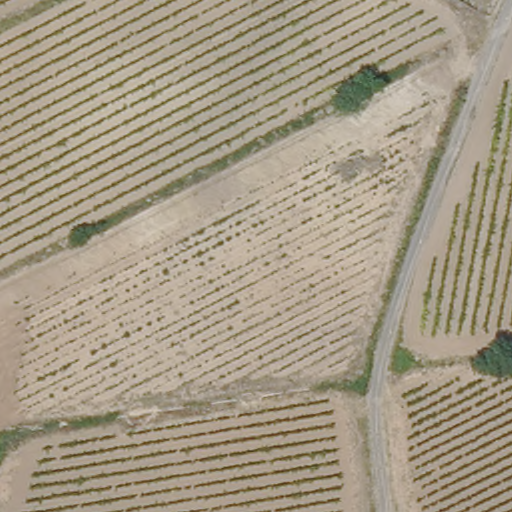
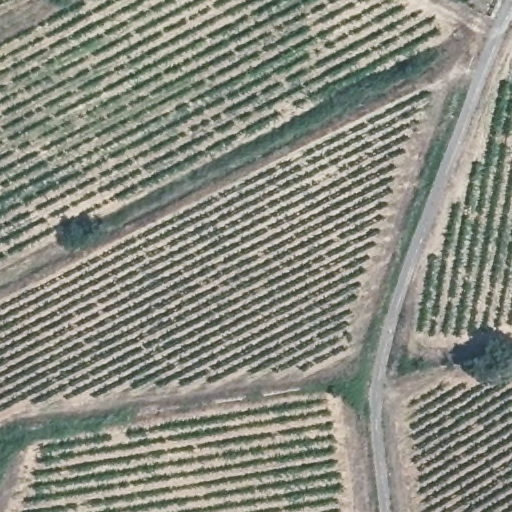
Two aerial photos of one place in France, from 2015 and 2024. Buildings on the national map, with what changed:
[]

